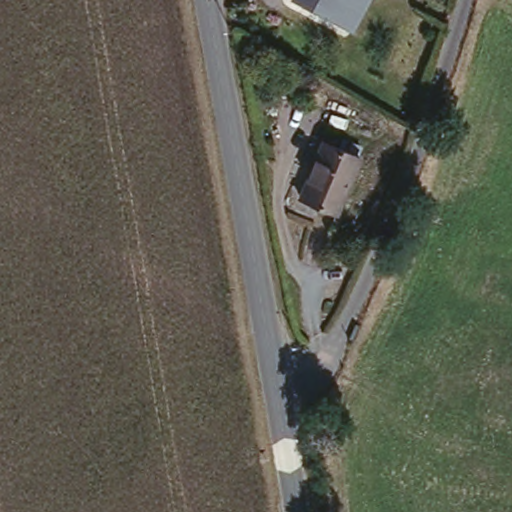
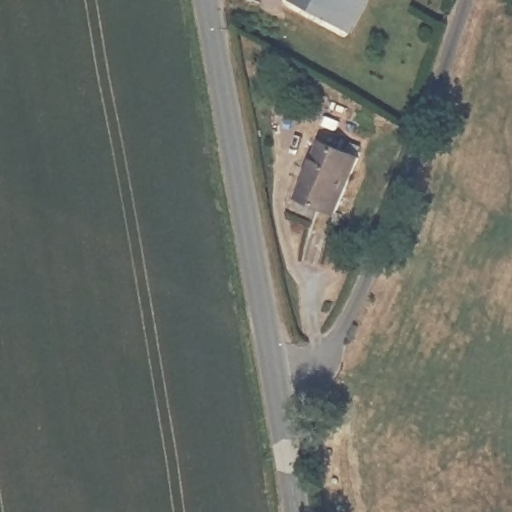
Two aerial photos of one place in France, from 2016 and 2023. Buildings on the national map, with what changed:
unchanged [(344,29),(295,0),(361,0),(344,29)]
unchanged [(339,212),(307,198),(328,147),(361,162),(339,212)]

